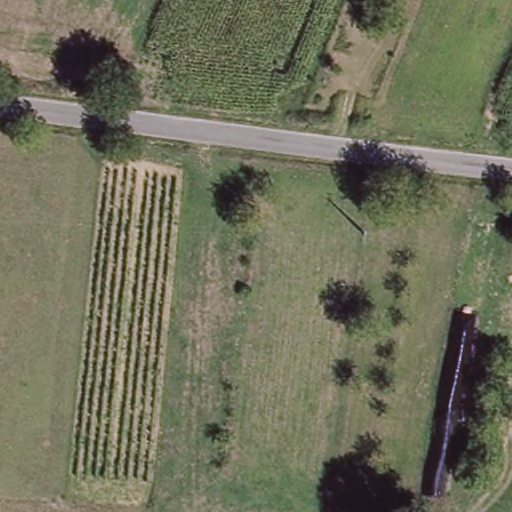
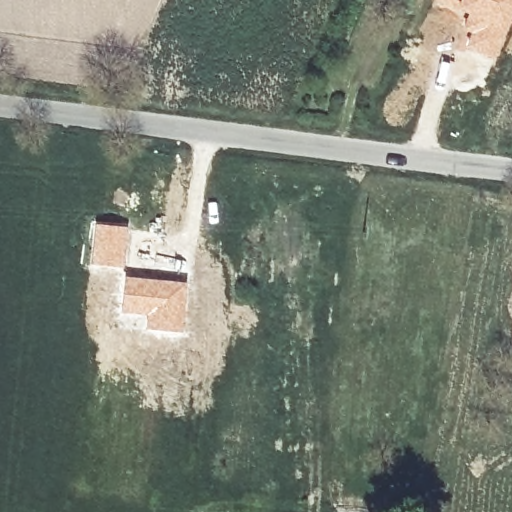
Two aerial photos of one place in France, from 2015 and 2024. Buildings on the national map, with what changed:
new [(435,0),(512,0),(512,15),(497,59),(461,47),(464,36),(459,33),(466,16),(434,4),(435,0)]
new [(95,222),(129,227),(124,268),(90,264),(95,222)]
new [(125,275),(187,282),(182,332),(144,327),(145,317),(120,313),(125,275)]

